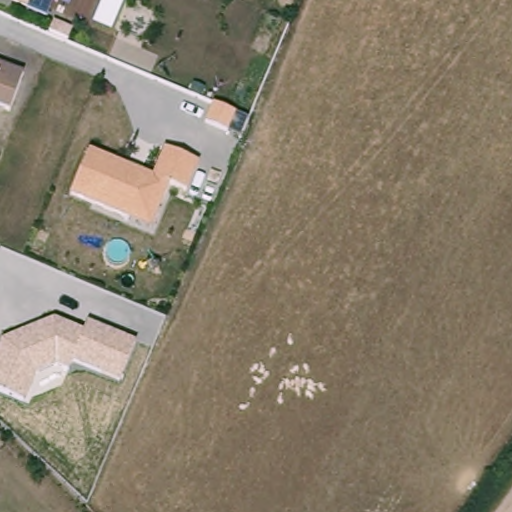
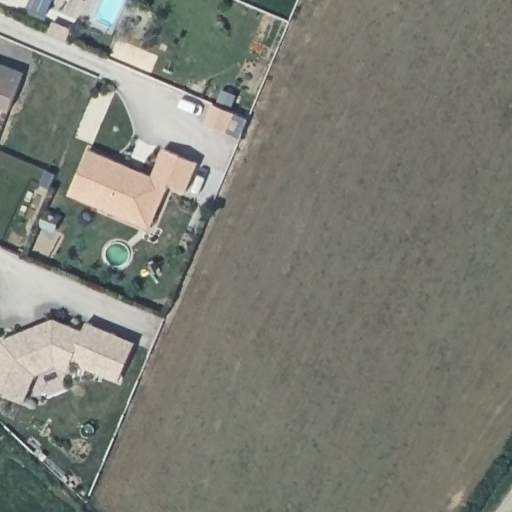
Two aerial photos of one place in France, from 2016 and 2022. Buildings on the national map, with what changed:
unchanged [(4,0),(7,0),(7,1),(4,0)]
unchanged [(21,75),(7,112),(0,110),(0,67),(21,75)]
unchanged [(155,177),(164,154),(200,166),(187,193),(170,187),(150,232),(71,196),(89,152),(155,177)]
unchanged [(1,340),(54,318),(84,331),(88,322),(135,342),(121,381),(74,362),(70,370),(56,365),(35,373),(25,402),(0,391),(0,342),(1,340)]

